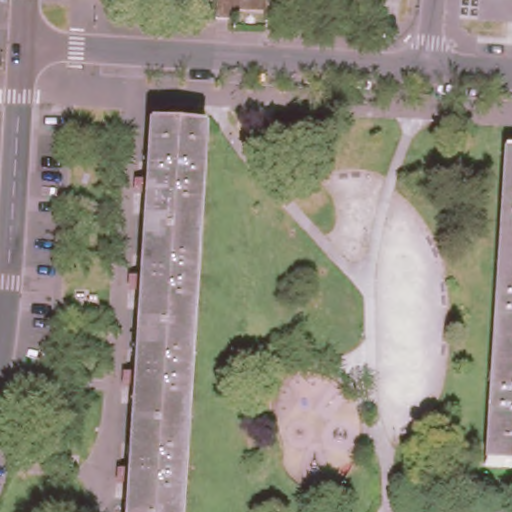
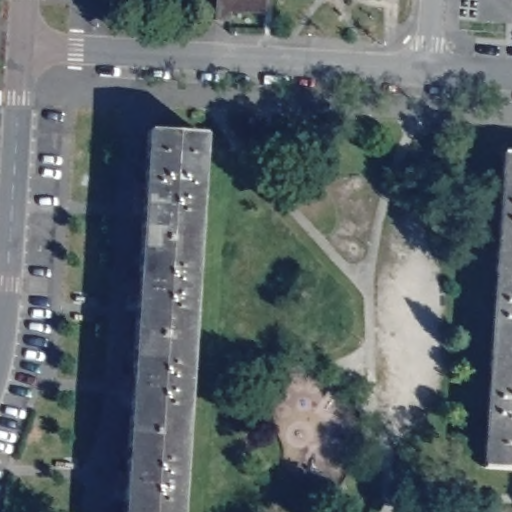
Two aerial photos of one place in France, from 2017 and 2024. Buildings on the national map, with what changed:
unchanged [(214,14),(215,0),(265,0),(265,3),(265,9),(230,7),(229,15),(214,14)]
unchanged [(150,128),(204,132),(197,232),(143,230),(150,128)]
unchanged [(497,257),(503,151),(512,152),(512,258),(497,257)]
unchanged [(191,331),(137,329),(143,230),(197,232),(191,331)]
unchanged [(491,363),(497,257),(512,258),(512,363),(491,363)]
unchanged [(185,431),(131,428),(137,329),(191,331),(185,431)]
unchanged [(485,466),(491,363),(512,363),(512,467),(485,466)]
unchanged [(180,512),(125,512),(131,428),(185,431),(180,512)]

